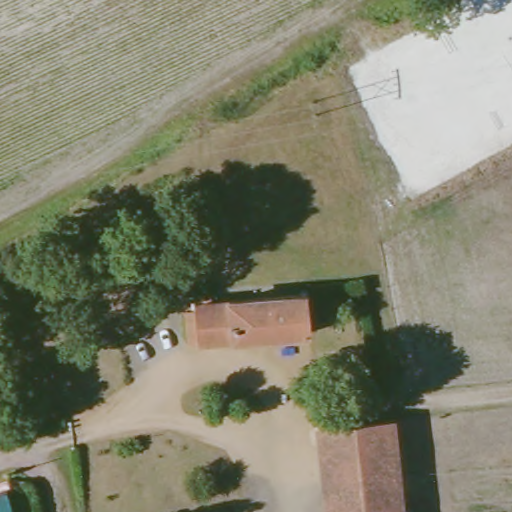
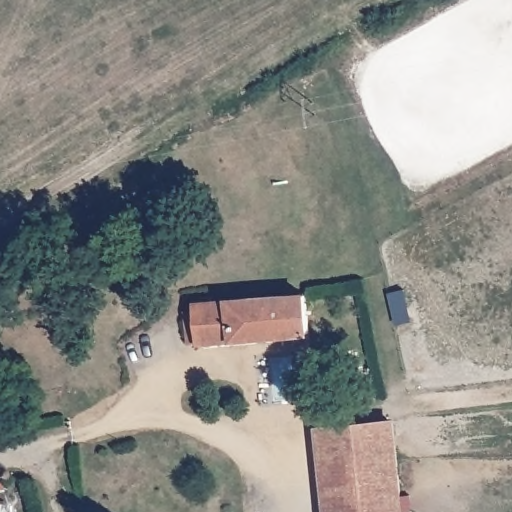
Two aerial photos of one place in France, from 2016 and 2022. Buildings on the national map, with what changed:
unchanged [(304,331),(185,343),(183,297),(298,286),(304,331)]
unchanged [(407,512),(321,512),(314,433),(400,425),(407,512)]
unchanged [(11,487),(5,490),(12,512),(0,512),(0,481),(8,479),(11,487)]

